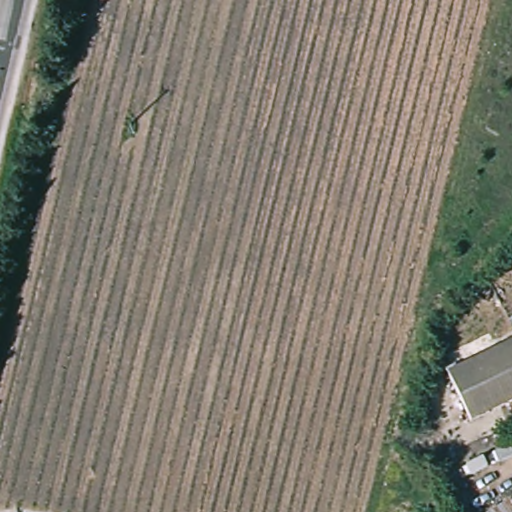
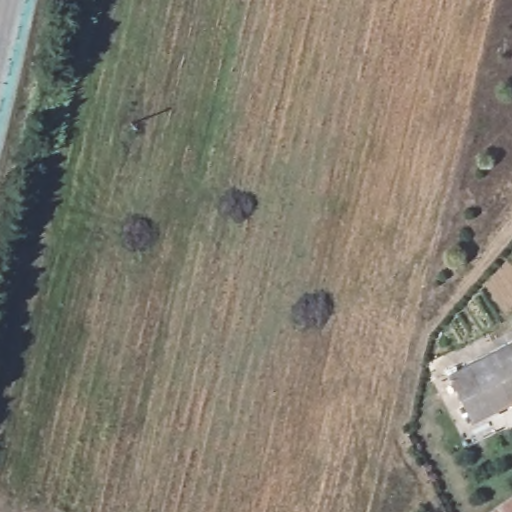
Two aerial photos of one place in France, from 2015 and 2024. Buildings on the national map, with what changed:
unchanged [(446,376),(512,343),(512,403),(469,425),(446,376)]

